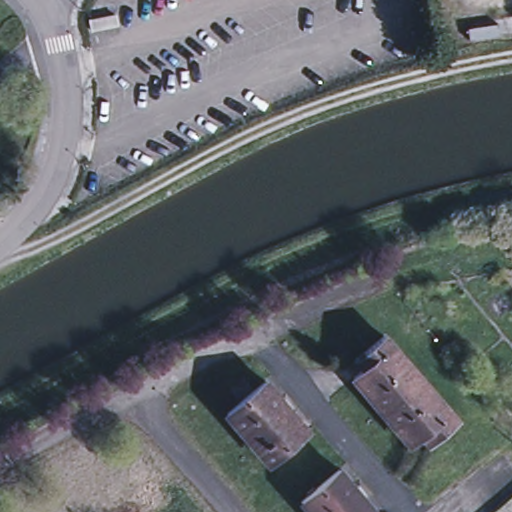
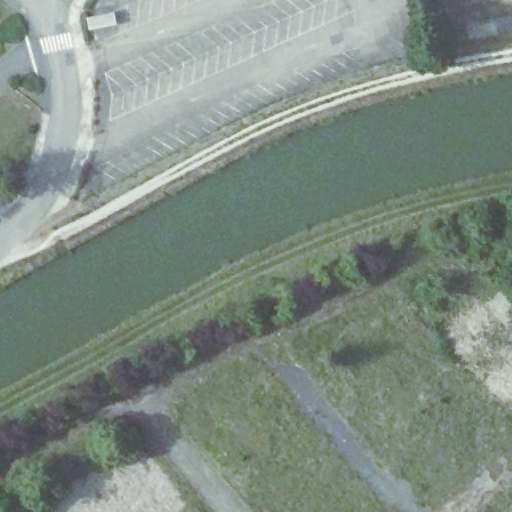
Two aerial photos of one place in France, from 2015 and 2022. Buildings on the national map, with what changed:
demolished [(462,420),(427,449),(419,439),(407,450),(350,376),(360,369),(351,359),(387,331),(462,420)]
demolished [(268,376),(312,431),(270,467),(223,413),(268,376)]
demolished [(381,512),(308,512),(298,501),(343,465),(381,512)]
demolished [(496,512),(512,499),(512,512),(496,512)]

